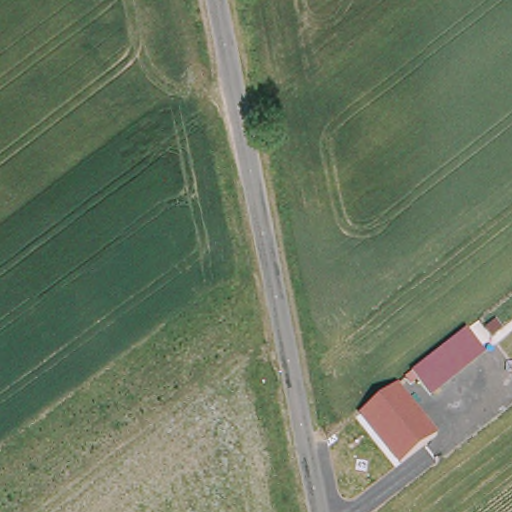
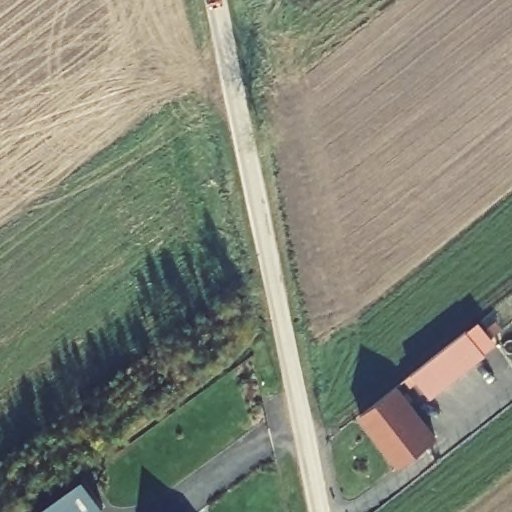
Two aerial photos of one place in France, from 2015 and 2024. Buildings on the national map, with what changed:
unchanged [(487,352),(431,396),(417,379),(412,383),(405,375),(466,326),(487,352)]
unchanged [(439,432),(399,464),(360,415),(399,383),(439,432)]
new [(96,512),(36,512),(82,479),(102,507),(96,512)]

